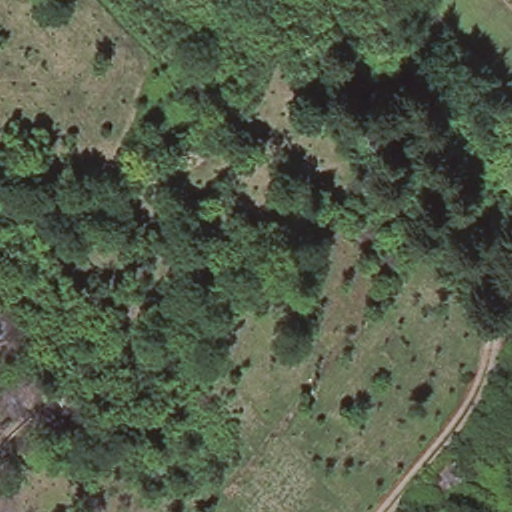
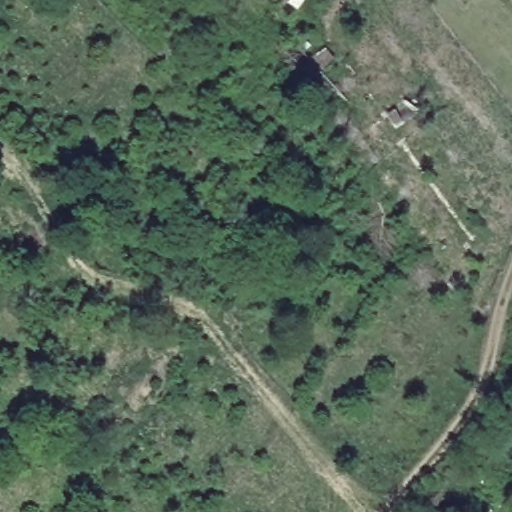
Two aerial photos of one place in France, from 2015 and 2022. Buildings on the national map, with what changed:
unchanged [(467,476),(454,494),(447,490),(435,505),(422,491),(450,458),(467,476)]

